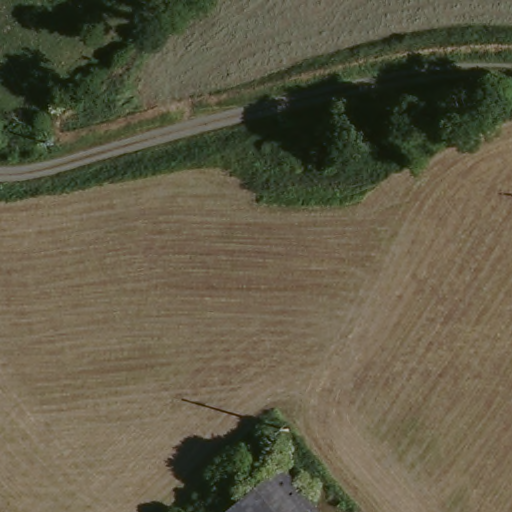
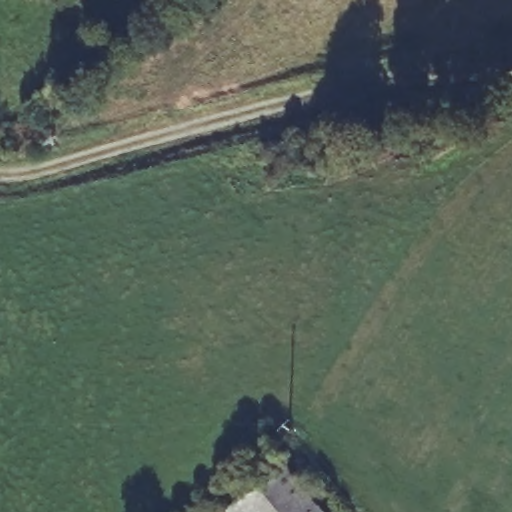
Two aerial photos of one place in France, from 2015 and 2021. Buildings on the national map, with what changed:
unchanged [(285,471),(320,512),(236,512),(285,471)]

